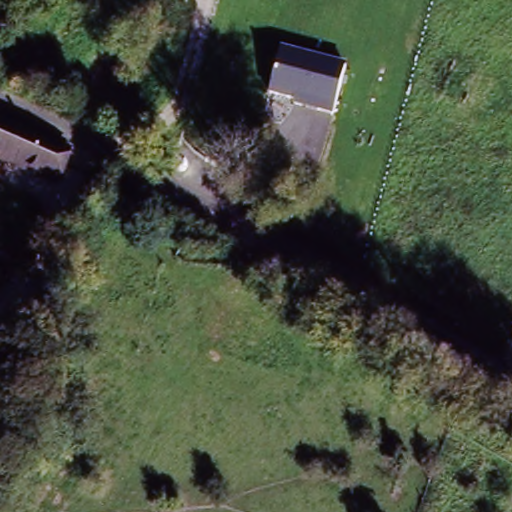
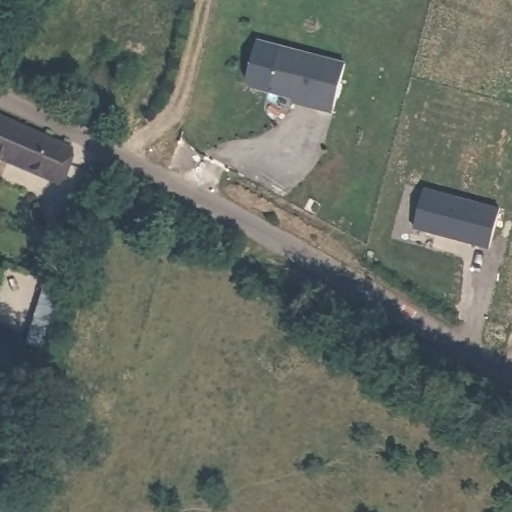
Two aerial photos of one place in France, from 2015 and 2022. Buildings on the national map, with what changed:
unchanged [(346,65),(332,115),(290,103),(291,98),(267,91),(278,47),(346,65)]
unchanged [(63,179),(0,150),(0,112),(77,147),(63,179)]
new [(501,207),(490,248),(413,228),(425,188),(501,207)]
unchanged [(44,330),(29,326),(41,280),(56,284),(44,330)]

